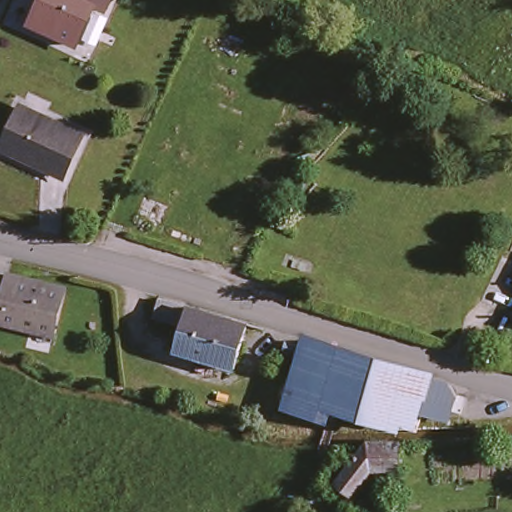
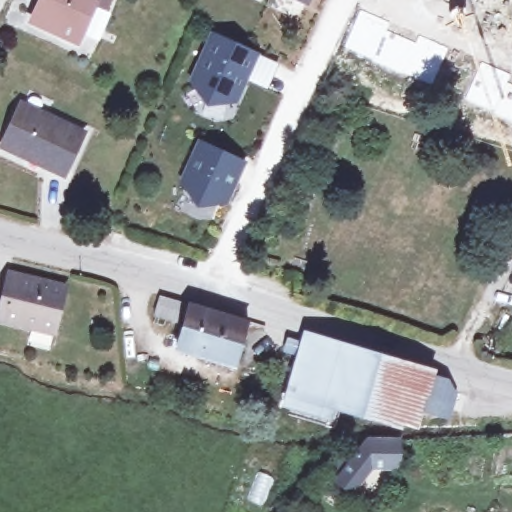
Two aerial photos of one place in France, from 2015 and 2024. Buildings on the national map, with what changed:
unchanged [(42,0),(98,0),(80,39),(34,18),(42,0)]
unchanged [(109,4),(100,0),(110,0),(109,4)]
new [(297,0),(310,0),(308,5),(297,0)]
new [(202,60),(215,32),(258,52),(248,74),(239,94),(229,101),(216,102),(205,97),(197,87),(196,74),(202,60)]
unchanged [(23,99),(85,127),(65,167),(4,138),(23,99)]
new [(202,140),(245,160),(229,195),(219,202),(206,204),(194,198),(187,188),(186,175),(202,140)]
unchanged [(335,214),(309,190),(329,172),(354,197),(335,214)]
unchanged [(55,326),(0,312),(0,309),(3,297),(11,267),(21,270),(67,282),(55,326)]
unchanged [(189,298),(184,316),(179,314),(157,308),(162,291),(184,297),(189,298)]
unchanged [(192,300),(248,315),(236,357),(178,341),(192,300)]
unchanged [(334,396),(329,409),(288,396),(292,385),(288,383),(306,331),(433,367),(432,370),(450,375),(446,387),(452,388),(453,396),(451,402),(443,407),(431,403),(430,396),(423,393),(416,415),(403,411),(400,416),(334,396)]
unchanged [(291,332),(301,336),(298,343),(288,341),(291,332)]
unchanged [(400,437),(399,466),(370,463),(352,488),(337,478),(370,435),(400,437)]

